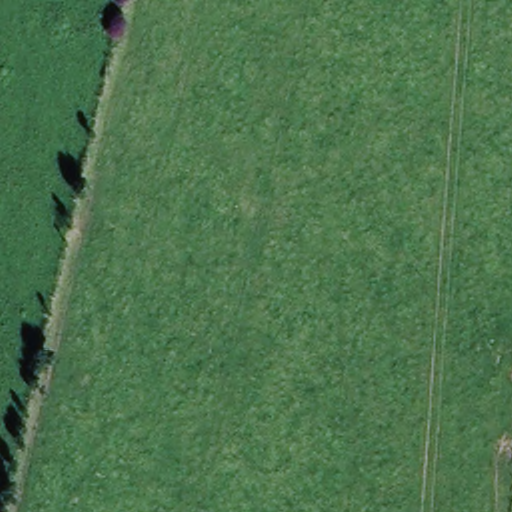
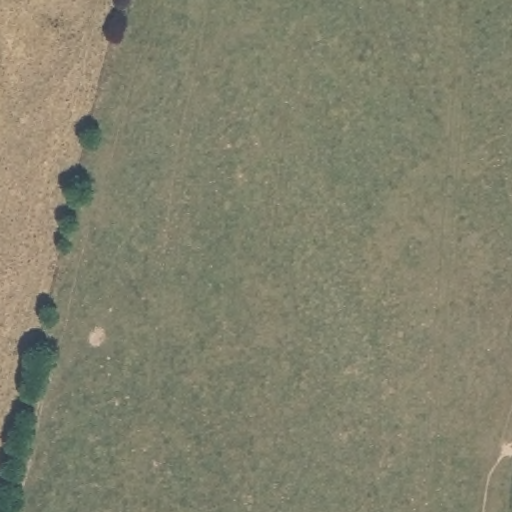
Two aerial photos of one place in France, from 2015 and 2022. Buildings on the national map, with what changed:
[]

